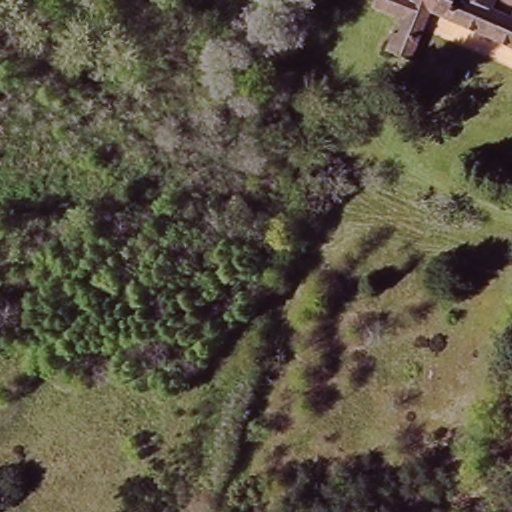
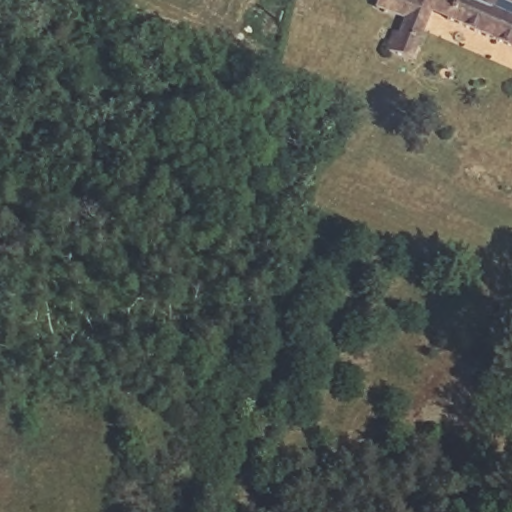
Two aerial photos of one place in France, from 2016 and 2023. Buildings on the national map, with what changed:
unchanged [(422,61),(395,50),(409,14),(388,6),(391,0),(481,0),(472,30),(440,19),(422,61)]
unchanged [(512,9),(512,42),(472,30),(481,0),(490,0),(490,2),(512,9)]

